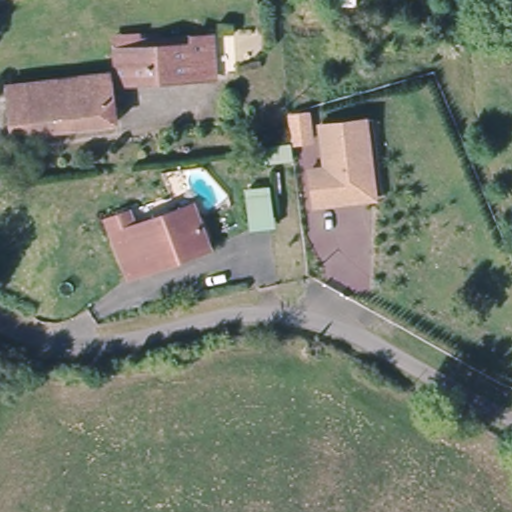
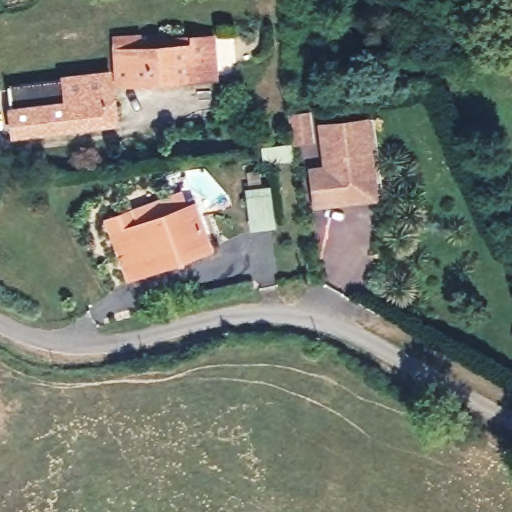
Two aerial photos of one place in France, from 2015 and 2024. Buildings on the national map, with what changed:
unchanged [(215,78),(115,87),(113,72),(110,37),(141,33),(141,38),(211,33),(215,78)]
unchanged [(115,87),(118,125),(9,138),(5,82),(113,72),(115,87)]
unchanged [(311,126),(294,127),(293,99),(309,94),(311,126)]
unchanged [(329,204),(313,205),(311,168),(324,168),(322,123),(367,120),(370,162),(374,200),(329,204)]
unchanged [(296,145),(264,146),(264,133),(295,131),(296,145)]
unchanged [(265,231),(250,232),(248,200),(264,201),(265,231)]
unchanged [(209,249),(126,272),(115,229),(111,212),(131,204),(134,220),(196,204),(209,249)]

